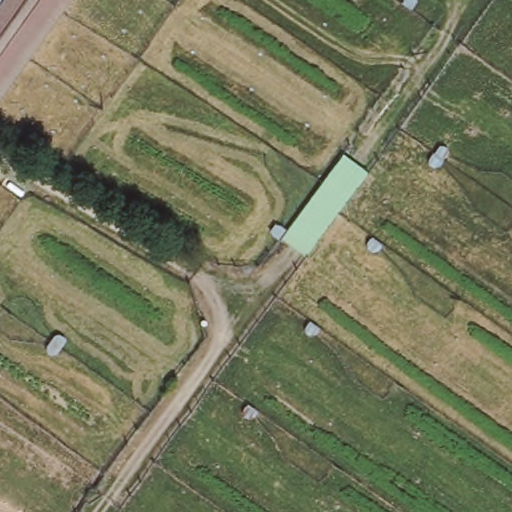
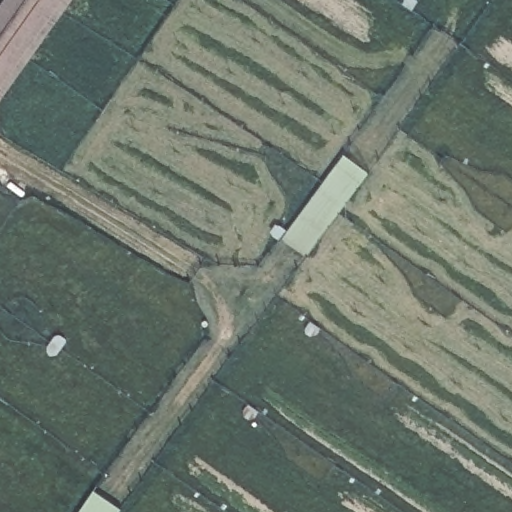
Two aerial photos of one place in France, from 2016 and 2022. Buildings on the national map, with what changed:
unchanged [(0,9),(7,0),(61,0),(0,88),(0,9)]
unchanged [(344,154),(369,173),(306,257),(281,239),(344,154)]

